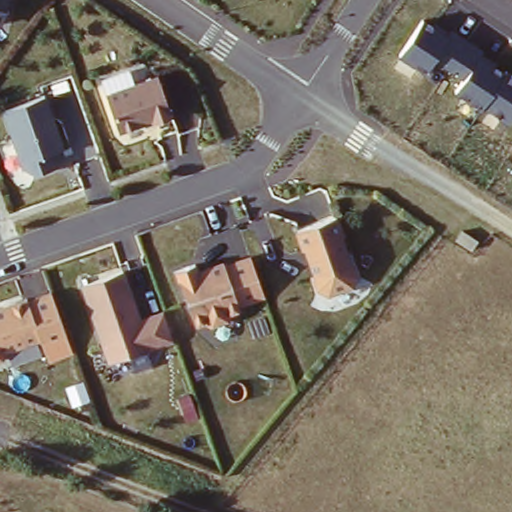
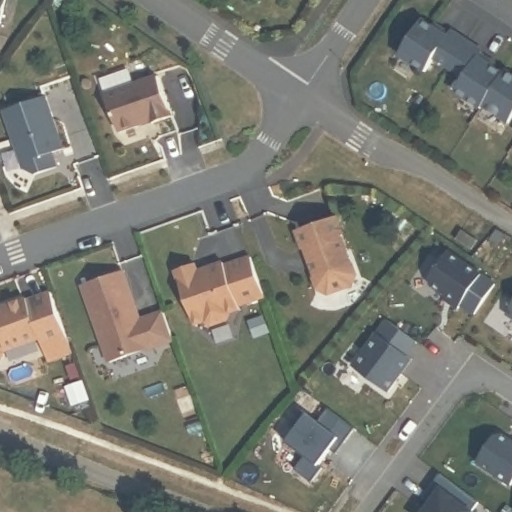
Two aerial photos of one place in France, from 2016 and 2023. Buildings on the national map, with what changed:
unchanged [(10,0),(2,21),(0,21),(0,0),(10,0)]
unchanged [(425,25),(432,28),(436,21),(446,26),(448,23),(486,47),(482,54),(495,61),(492,66),(500,71),(505,65),(512,68),(512,72),(507,78),(512,80),(512,120),(509,124),(483,108),(482,110),(455,91),(465,79),(436,61),(427,75),(397,56),(422,16),(428,20),(425,25)]
unchanged [(160,75),(174,110),(125,128),(114,92),(160,75)]
unchanged [(50,95),(66,146),(57,149),(61,164),(39,170),(24,163),(6,111),(50,95)]
unchanged [(341,214),(361,274),(356,286),(330,291),(320,282),(298,227),(341,214)]
new [(457,311),(440,301),(442,294),(432,289),(429,280),(446,251),(481,273),(457,311)]
unchanged [(195,264),(197,268),(227,259),(229,262),(254,255),(266,297),(240,304),(241,310),(229,313),(231,321),(214,327),(209,319),(198,323),(175,270),(195,264)]
unchanged [(129,269),(145,315),(166,311),(175,342),(111,358),(82,284),(129,269)]
unchanged [(52,289),(70,338),(49,345),(46,338),(6,351),(7,358),(0,360),(0,306),(52,289)]
new [(512,307),(512,318),(507,315),(512,307)]
new [(408,358),(413,361),(391,394),(354,369),(386,321),(417,342),(408,358)]
new [(335,454),(330,449),(320,463),(322,467),(312,480),(295,470),(303,456),(286,443),(306,415),(316,423),(328,410),(353,428),(335,454)]
new [(498,432),(512,440),(512,485),(511,487),(476,464),(498,432)]
new [(471,512),(472,512),(425,512),(431,501),(424,497),(438,476),(477,502),(471,512)]

